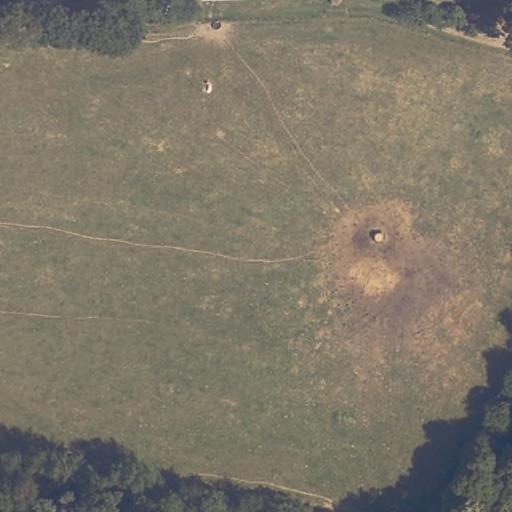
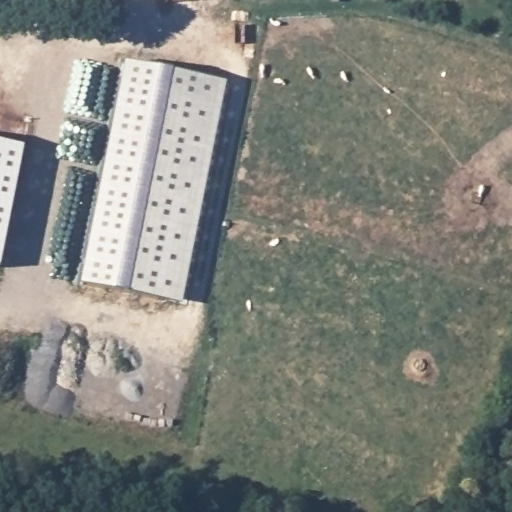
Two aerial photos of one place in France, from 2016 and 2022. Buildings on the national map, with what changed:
unchanged [(327,4),(327,0),(336,0),(337,3),(327,4)]
new [(125,62),(228,82),(183,306),(81,286),(125,62)]
new [(1,269),(0,269),(0,143),(26,148),(1,269)]

